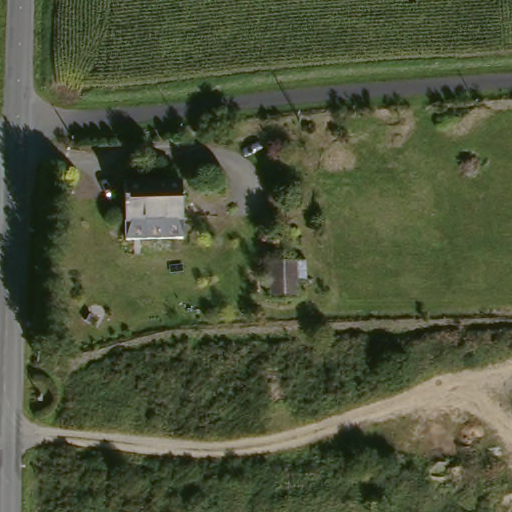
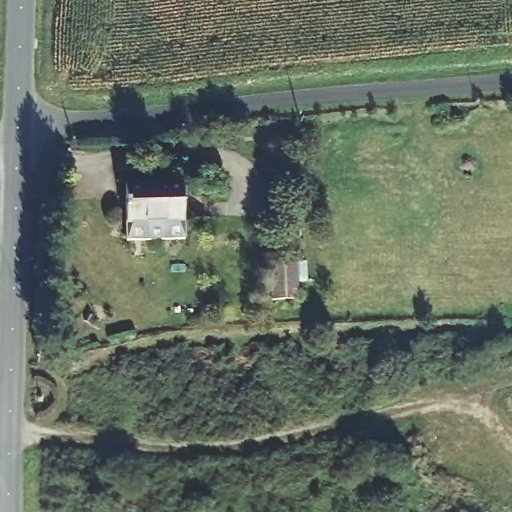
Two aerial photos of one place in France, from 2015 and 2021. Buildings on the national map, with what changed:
unchanged [(189,180),(188,217),(131,219),(130,180),(189,180)]
unchanged [(280,300),(279,263),(307,262),(307,298),(280,300)]

